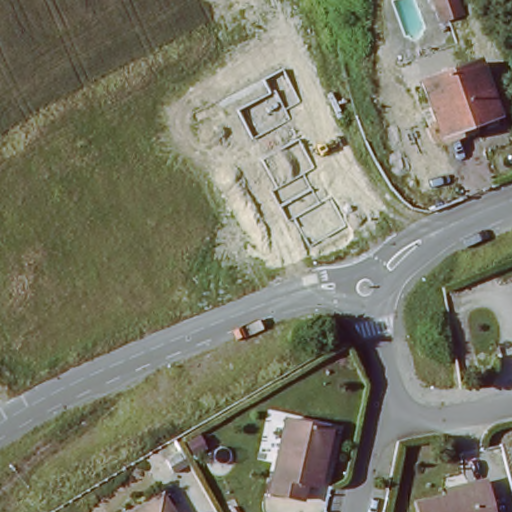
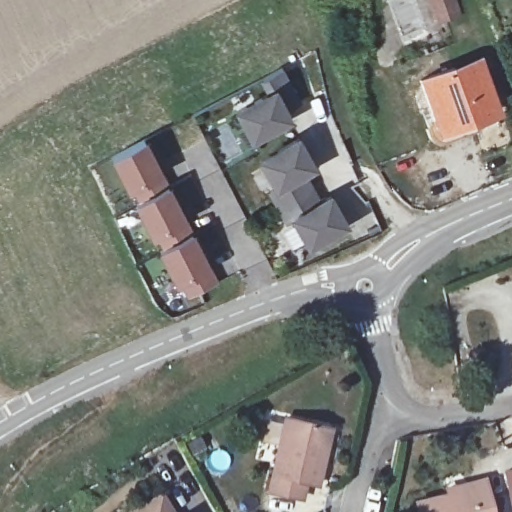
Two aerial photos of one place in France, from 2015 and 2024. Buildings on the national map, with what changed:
new [(438,26),(430,0),(459,0),(464,18),(438,26)]
unchanged [(466,58),(490,113),(439,136),(415,80),(466,58)]
unchanged [(270,84),(263,71),(284,60),(301,94),(286,102),(291,111),(253,132),(238,102),(270,84)]
new [(301,131),(318,160),(307,166),(324,195),(335,189),(351,218),(314,239),(298,211),(291,214),(274,184),(280,181),(264,153),(301,131)]
new [(145,139),(210,269),(218,281),(188,297),(178,284),(176,285),(110,159),(145,139)]
unchanged [(327,422),(320,480),(305,478),(301,500),(266,494),(278,416),(327,422)]
new [(512,480),(512,512),(506,512),(504,482),(512,480)]
unchanged [(485,483),(492,512),(413,512),(413,508),(446,503),(443,491),(485,483)]
unchanged [(158,496),(168,512),(133,512),(158,496)]

